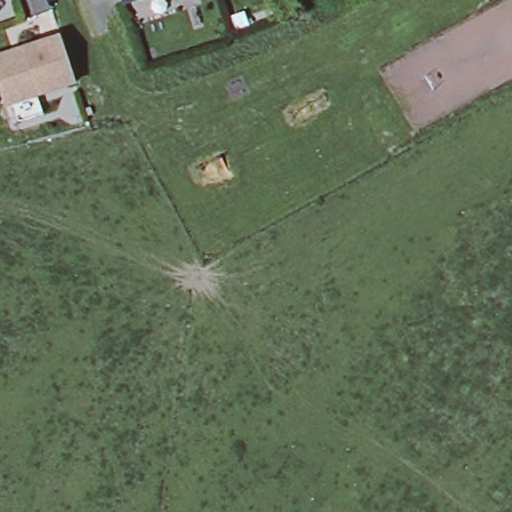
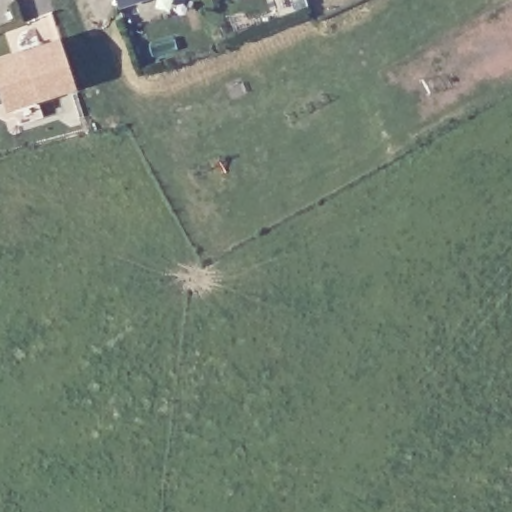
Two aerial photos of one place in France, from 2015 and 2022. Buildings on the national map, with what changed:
unchanged [(122,5),(120,0),(138,0),(137,1),(122,5)]
unchanged [(7,110),(0,93),(0,63),(7,60),(22,54),(56,41),(73,84),(7,110)]

